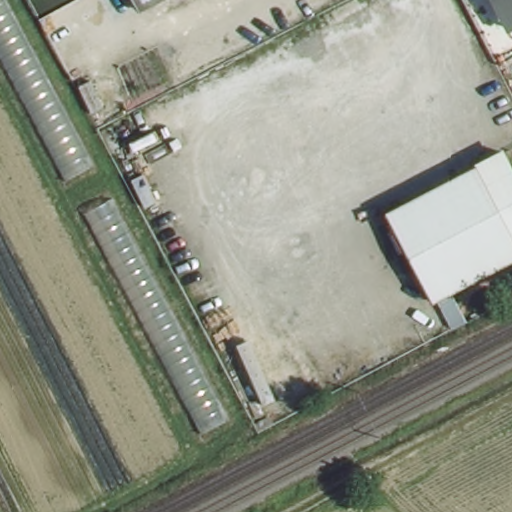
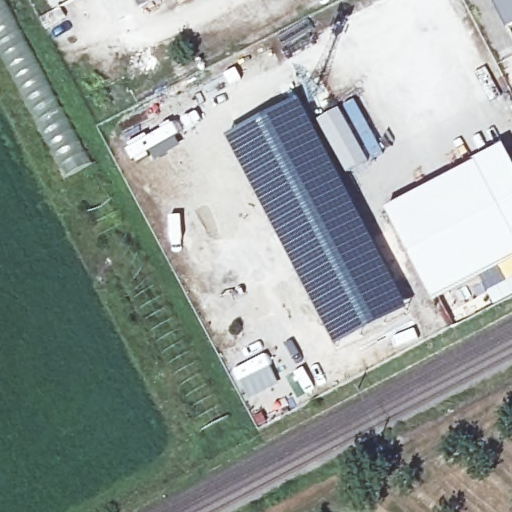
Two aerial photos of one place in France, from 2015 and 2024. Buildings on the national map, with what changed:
unchanged [(97,164),(66,182),(0,58),(0,0),(9,0),(97,164)]
unchanged [(141,5),(139,0),(150,0),(141,5)]
unchanged [(490,0),(512,0),(512,31),(508,33),(490,0)]
new [(300,99),(314,125),(394,277),(408,308),(335,348),(226,138),(300,99)]
new [(318,120),(342,108),(355,101),(382,153),(370,160),(347,174),(318,120)]
new [(175,123),(182,134),(137,162),(129,149),(175,123)]
unchanged [(512,157),(512,256),(437,297),(390,210),(507,148),(512,157)]
demolished [(230,418),(201,433),(84,212),(115,195),(230,418)]
new [(266,354),(278,381),(247,398),(232,371),(266,354)]

